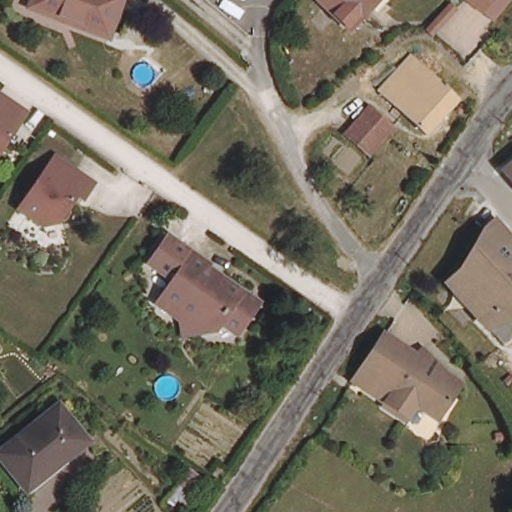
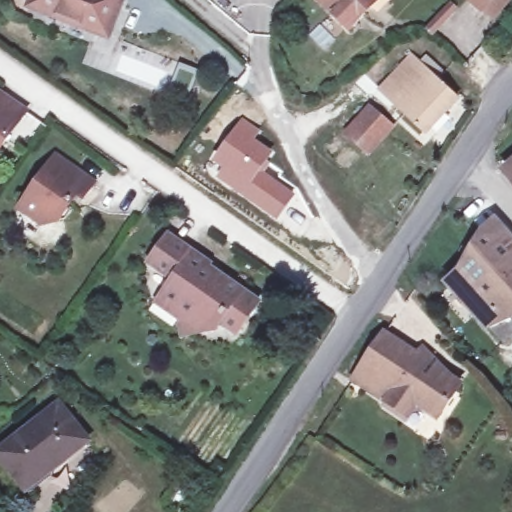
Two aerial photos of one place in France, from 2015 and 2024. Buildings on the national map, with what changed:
unchanged [(26,1),(27,0),(116,0),(104,31),(26,1)]
unchanged [(372,0),(357,15),(361,19),(346,35),(315,4),(318,0),(372,0)]
unchanged [(491,0),(482,12),(468,1),(469,0),(491,0)]
unchanged [(427,133),(380,91),(412,56),(458,99),(427,133)]
new [(179,64),(198,70),(185,100),(169,94),(179,64)]
unchanged [(27,112),(0,151),(0,93),(27,112)]
unchanged [(383,118),(393,127),(380,141),(369,154),(347,134),(370,107),(383,118)]
new [(219,167),(214,164),(241,117),(262,130),(257,139),(274,150),(263,170),(296,192),(277,221),(213,176),(219,167)]
unchanged [(94,183),(83,198),(77,194),(58,221),(44,224),(20,208),(56,156),(94,183)]
unchanged [(512,169),(512,184),(505,175),(512,169)]
unchanged [(477,313),(477,315),(447,282),(461,270),(486,227),(495,219),(503,229),(512,239),(512,317),(489,327),(477,313)]
unchanged [(174,314),(153,298),(158,290),(170,275),(146,258),(165,232),(203,260),(198,266),(217,280),(220,276),(252,300),(230,330),(214,317),(207,326),(200,327),(176,331),(174,314)]
unchanged [(412,355),(418,349),(443,376),(456,385),(433,418),(419,409),(407,411),(402,420),(380,405),(382,402),(350,380),(380,333),(412,355)]
unchanged [(23,484),(0,455),(0,454),(60,406),(88,441),(50,471),(28,490),(23,484)]

